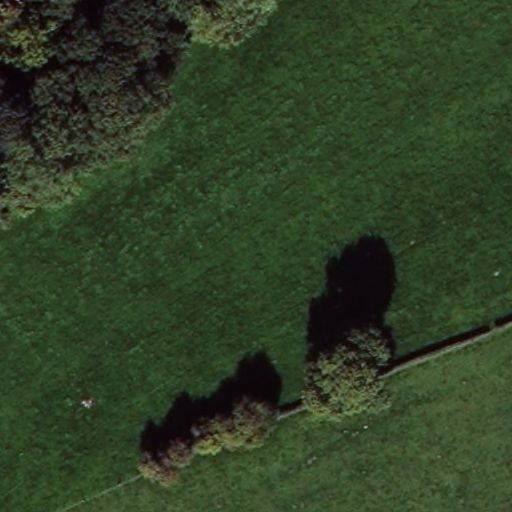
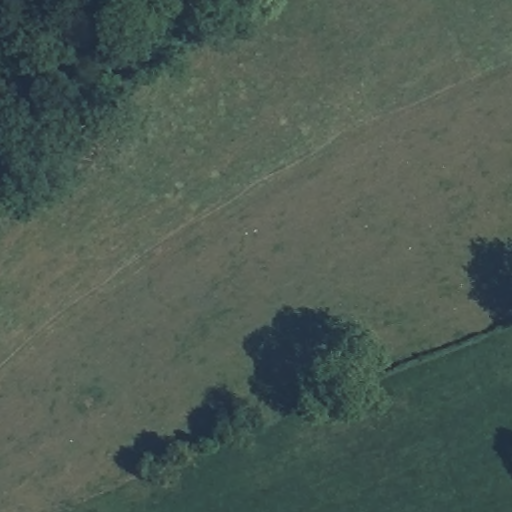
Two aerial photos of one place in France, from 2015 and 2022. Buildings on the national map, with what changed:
[]

